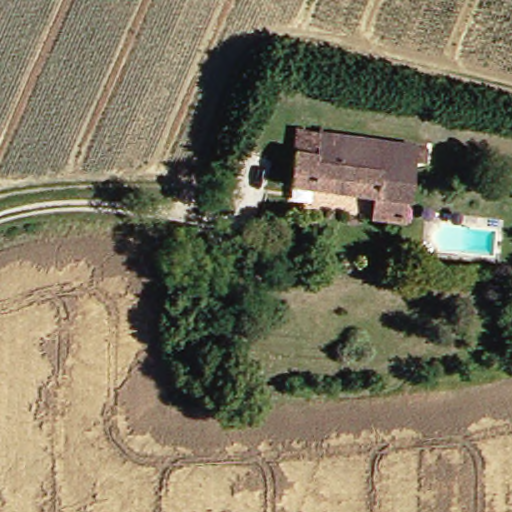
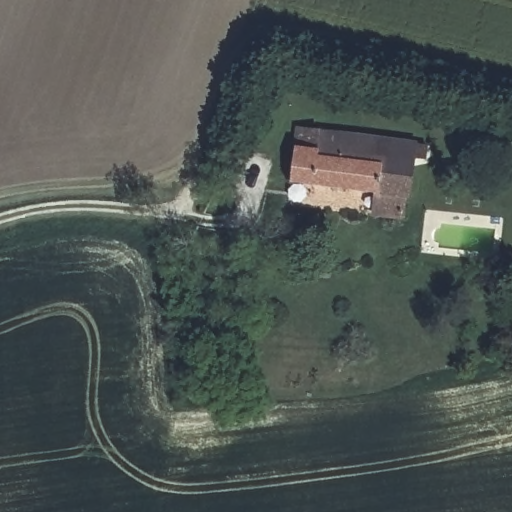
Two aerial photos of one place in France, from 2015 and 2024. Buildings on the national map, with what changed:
unchanged [(386,219),(388,189),(305,183),(307,151),(330,153),(331,131),(433,141),(432,160),(415,159),(413,192),(410,220),(386,219)]

